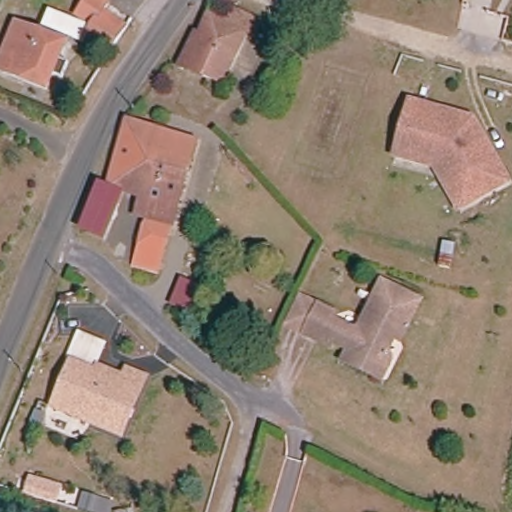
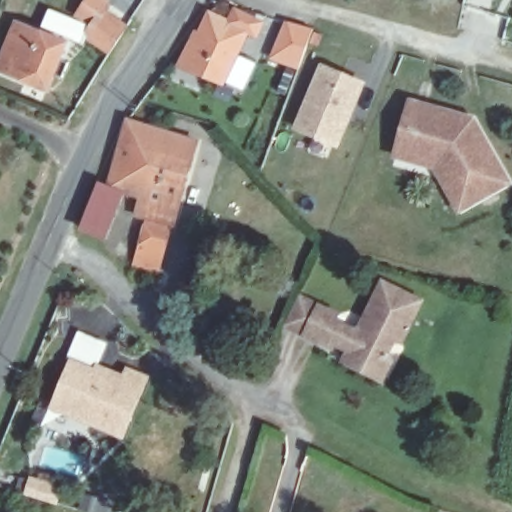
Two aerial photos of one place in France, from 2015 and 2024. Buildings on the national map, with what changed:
unchanged [(46,12),(64,20),(76,0),(104,0),(136,20),(133,27),(132,27),(93,3),(80,23),(81,23),(66,46),(63,45),(37,36),(46,12)]
unchanged [(96,32),(81,23),(80,23),(93,3),(132,27),(129,33),(116,54),(93,39),(96,32)]
unchanged [(231,24),(239,11),(266,22),(257,36),(247,34),(223,86),(178,67),(188,43),(213,15),(231,24)]
new [(315,30),(299,72),(269,60),(285,20),(315,30)]
unchanged [(37,36),(63,45),(57,60),(66,64),(60,80),(50,76),(44,91),(0,74),(0,61),(14,27),(37,36)]
new [(367,81),(339,148),(293,129),(320,64),(367,81)]
unchanged [(429,162),(389,150),(390,145),(404,97),(466,115),(474,130),(481,141),(500,178),(466,196),(452,205),(429,162)]
unchanged [(103,180),(109,181),(128,121),(198,140),(173,227),(139,215),(142,200),(121,191),(105,241),(81,232),(103,180)]
unchanged [(170,240),(160,275),(136,269),(146,234),(170,240)]
unchanged [(357,365),(338,356),(343,345),(328,337),(325,342),(299,330),(279,320),(287,303),(293,291),(313,301),(330,309),(327,316),(347,325),(350,318),(358,321),(361,315),(357,313),(374,276),(414,295),(394,336),(387,333),(381,345),(384,356),(376,374),(357,365)]
unchanged [(120,382),(124,372),(143,377),(123,432),(54,408),(69,365),(120,382)]

